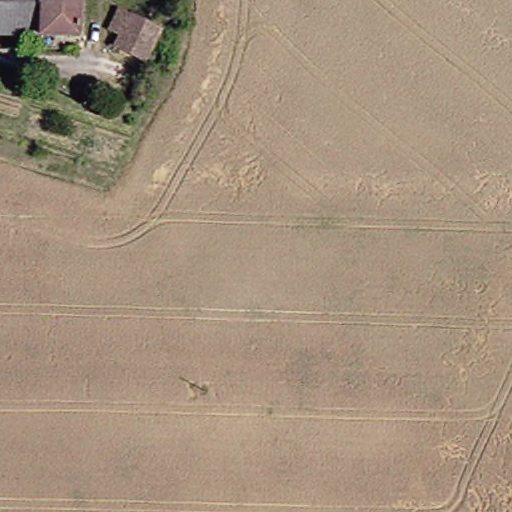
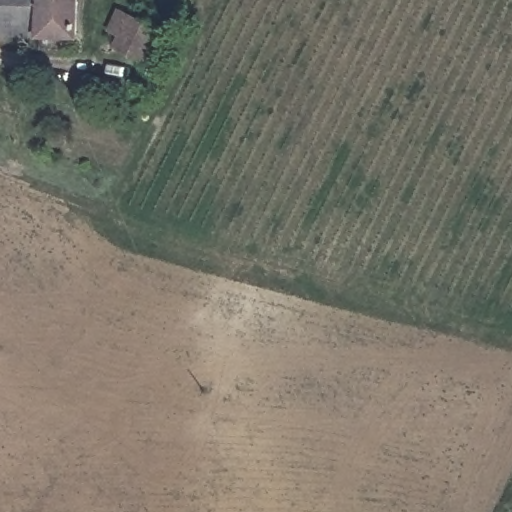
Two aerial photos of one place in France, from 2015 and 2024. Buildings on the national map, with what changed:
unchanged [(75,29),(0,33),(0,0),(74,0),(75,29)]
unchanged [(156,20),(146,54),(111,45),(123,8),(156,20)]

